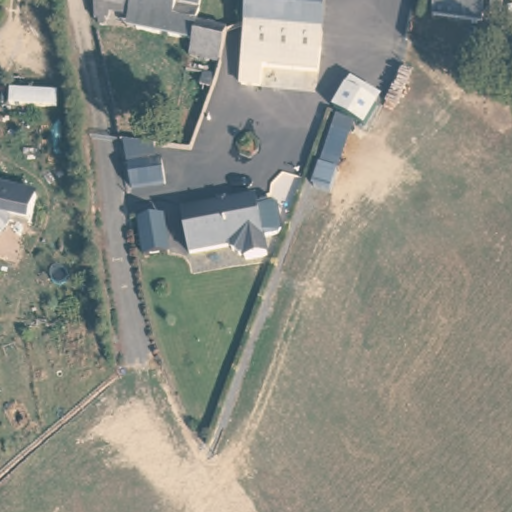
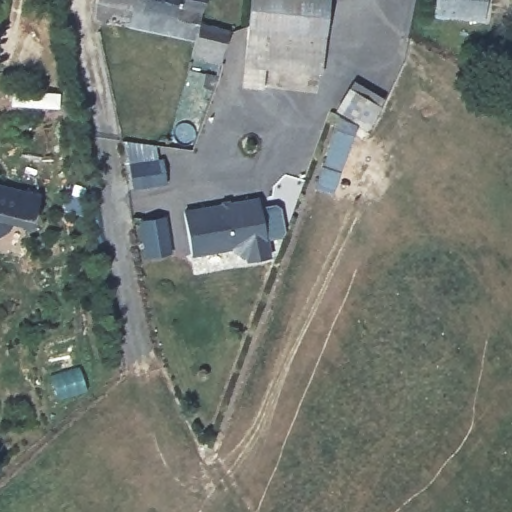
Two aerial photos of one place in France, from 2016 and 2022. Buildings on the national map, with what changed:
unchanged [(109,6),(107,17),(93,15),(94,1),(90,0),(202,0),(198,19),(227,26),(221,60),(191,55),(192,37),(139,26),(128,24),(129,8),(109,6)]
unchanged [(329,0),(326,28),(249,21),(251,0),(329,0)]
unchanged [(435,12),(436,0),(487,0),(484,17),(435,12)]
unchanged [(326,28),(322,69),(264,65),(263,82),(243,80),(249,21),(326,28)]
unchanged [(213,85),(211,84),(203,82),(202,71),(215,72),(218,73),(213,85)]
unchanged [(360,89),(377,97),(364,124),(344,112),(337,109),(349,82),(360,89)]
unchanged [(132,160),(163,156),(167,180),(136,184),(132,160)]
unchanged [(30,231),(12,227),(5,234),(0,236),(0,187),(38,192),(30,231)]
unchanged [(257,195),(262,226),(266,253),(244,257),(244,252),(242,251),(232,247),(231,242),(189,249),(182,207),(257,195)]
unchanged [(162,211),(170,263),(150,266),(142,215),(162,211)]

